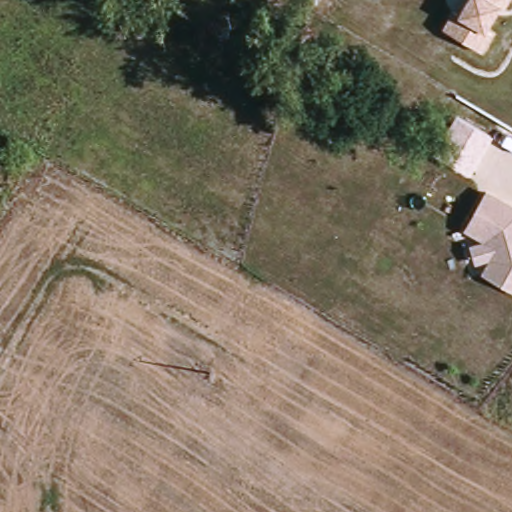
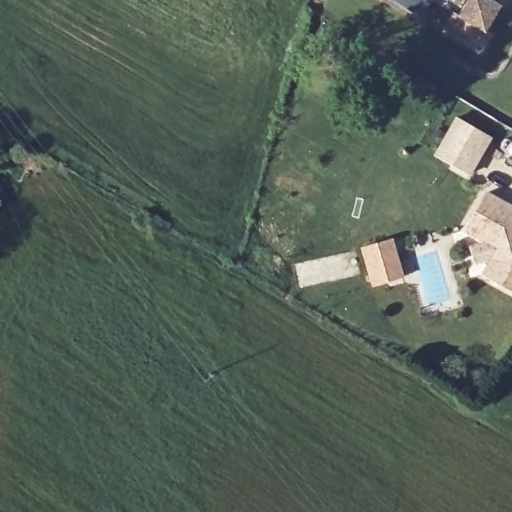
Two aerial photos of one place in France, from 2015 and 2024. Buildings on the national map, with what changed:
unchanged [(503,1),(489,30),(494,34),(484,51),(443,27),(452,10),(460,14),(468,0),(512,0),(509,6),(503,1)]
new [(494,138),(473,176),(434,156),(456,118),(494,138)]
unchanged [(512,290),(481,275),(490,261),(475,264),(470,245),(484,241),(464,232),(489,188),(512,200),(512,290)]
new [(361,246),(394,237),(404,275),(373,286),(361,246)]

